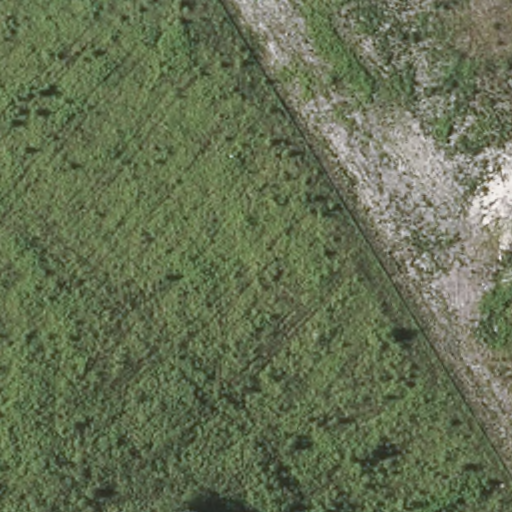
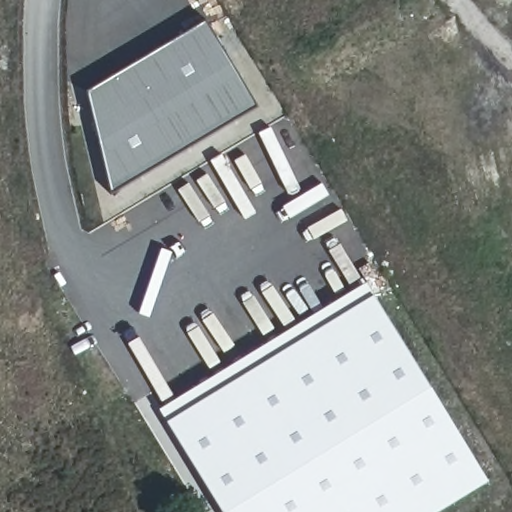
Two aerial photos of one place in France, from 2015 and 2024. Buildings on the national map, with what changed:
new [(111,191),(89,93),(207,23),(257,107),(111,191)]
new [(223,512),(168,421),(373,295),(489,482),(440,512),(223,512)]

